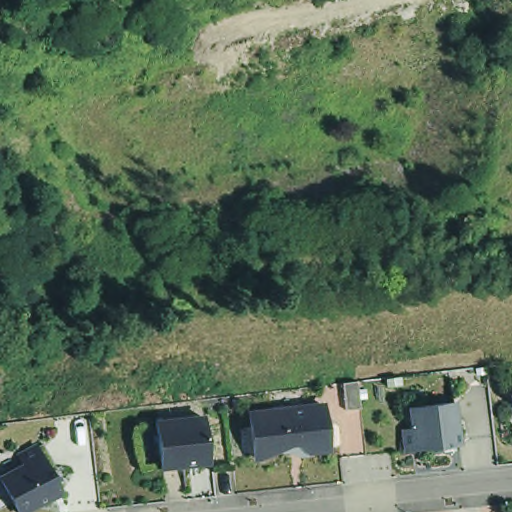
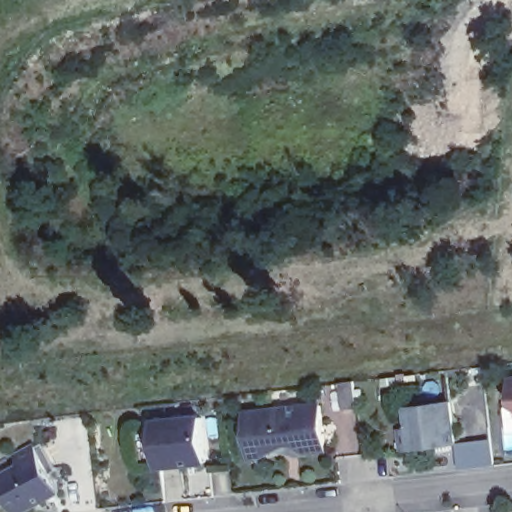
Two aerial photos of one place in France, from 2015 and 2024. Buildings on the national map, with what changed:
unchanged [(407,406),(454,402),(459,443),(411,451),(407,406)]
unchanged [(274,418),(288,417),(288,413),(321,409),(326,452),(304,455),(294,447),(286,448),(256,462),(251,417),(274,414),(274,418)]
unchanged [(188,468),(163,470),(157,426),(206,421),(210,460),(211,465),(188,468)]
unchanged [(496,463),(463,465),(459,443),(493,442),(496,463)]
unchanged [(45,447),(59,473),(54,477),(63,495),(32,512),(19,512),(3,481),(26,469),(21,460),(39,450),(40,450),(45,447)]

